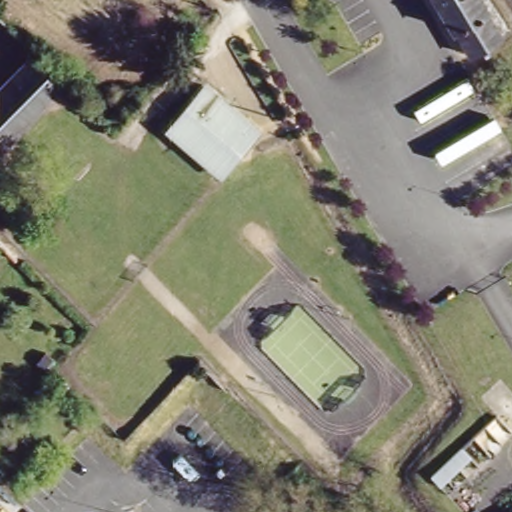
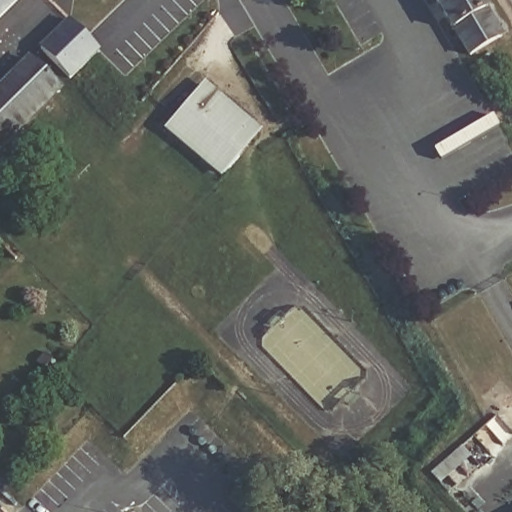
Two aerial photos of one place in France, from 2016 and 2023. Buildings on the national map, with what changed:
new [(0,18),(0,0),(18,0),(0,18)]
demolished [(120,4),(130,12),(113,31),(95,16),(98,13),(83,0),(124,0),(120,4)]
unchanged [(431,0),(481,0),(505,41),(467,62),(431,0)]
new [(70,80),(38,47),(67,20),(100,52),(70,80)]
unchanged [(32,62),(60,92),(0,152),(0,93),(32,62)]
unchanged [(236,155),(220,175),(164,127),(199,85),(250,128),(255,132),(236,155)]
unchanged [(478,460),(448,489),(439,479),(470,451),(478,460)]

